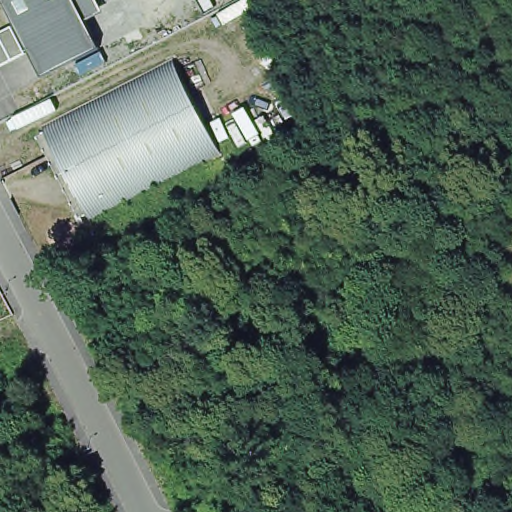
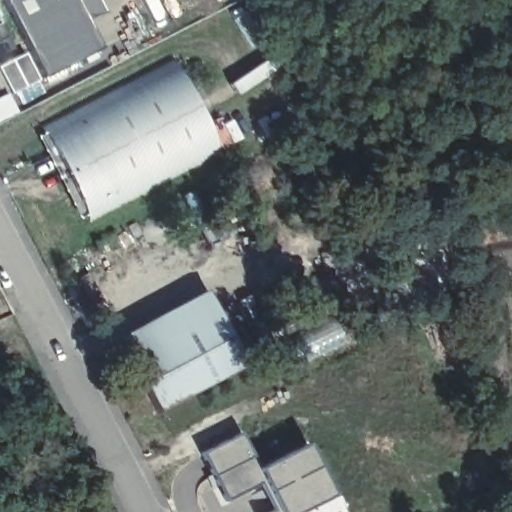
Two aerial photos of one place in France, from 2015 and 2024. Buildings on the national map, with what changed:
unchanged [(88,22),(30,52),(16,25),(4,0),(76,0),(88,22)]
new [(106,13),(88,22),(76,0),(100,0),(106,13)]
unchanged [(88,22),(101,47),(43,77),(30,52),(88,22)]
new [(30,52),(0,67),(0,33),(16,25),(30,52)]
unchanged [(91,222),(41,131),(176,59),(226,155),(91,222)]
new [(9,91),(19,112),(0,122),(0,96),(9,91)]
new [(250,362),(161,413),(118,338),(208,292),(250,362)]
demolished [(27,334),(0,339),(0,319),(21,314),(27,334)]
new [(263,468),(312,445),(342,512),(275,512),(280,510),(268,484),(228,504),(204,455),(246,434),(263,468)]

